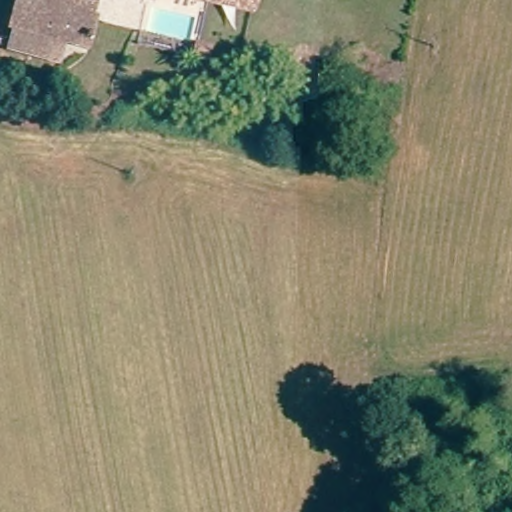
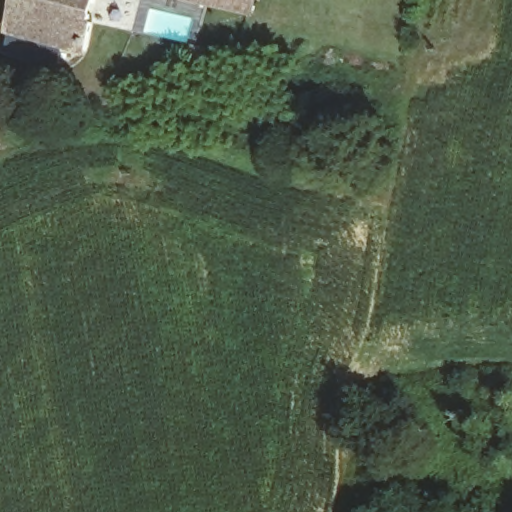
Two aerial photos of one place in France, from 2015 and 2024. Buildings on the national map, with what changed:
unchanged [(93,0),(89,15),(93,16),(86,44),(63,38),(13,25),(7,23),(13,0),(93,0)]
unchanged [(191,0),(259,0),(255,15),(191,0)]
unchanged [(63,38),(58,57),(8,44),(13,25),(63,38)]

